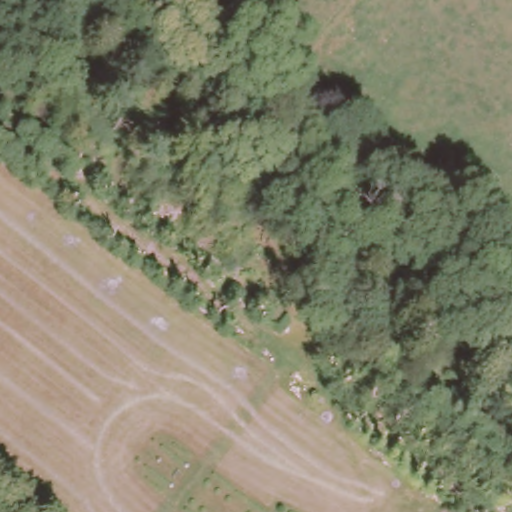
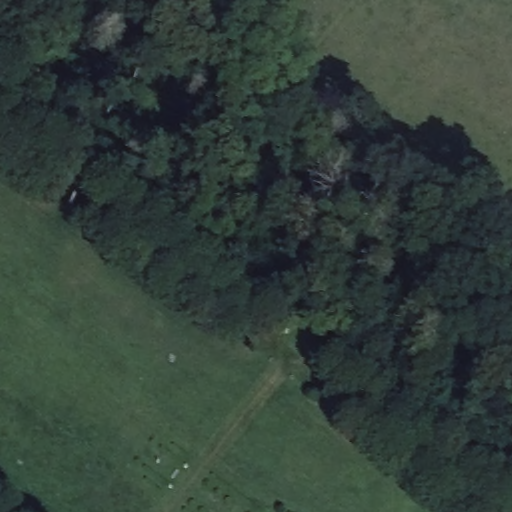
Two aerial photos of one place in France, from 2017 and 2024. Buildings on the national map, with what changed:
[]

